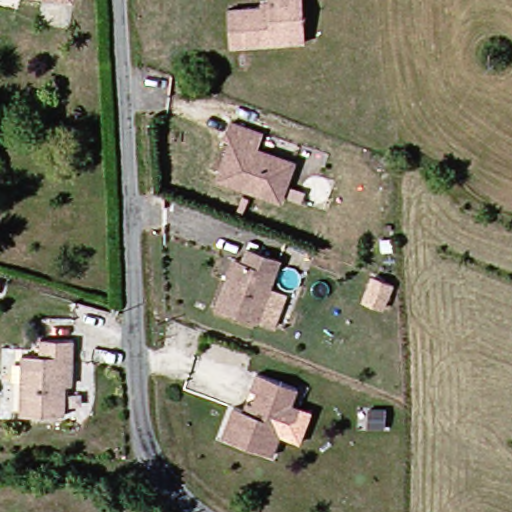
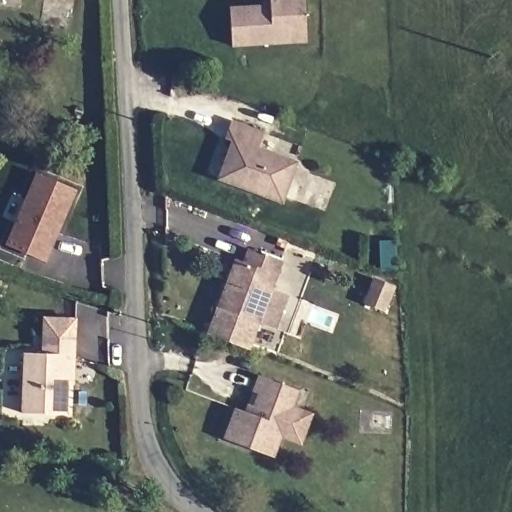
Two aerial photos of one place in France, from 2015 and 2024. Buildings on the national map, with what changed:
unchanged [(266,0),(302,0),(304,44),(228,48),(227,11),(267,10),(266,0)]
unchanged [(217,173),(227,149),(220,144),(229,126),(265,140),(261,154),(293,166),(278,207),(246,194),(213,182),(217,173)]
new [(8,244),(40,174),(78,191),(45,261),(8,244)]
unchanged [(274,333),(256,327),(214,312),(231,262),(242,266),(246,253),(277,265),(267,293),(285,300),(274,333)]
unchanged [(376,274),(396,282),(386,307),(367,298),(376,274)]
unchanged [(20,417),(16,359),(35,358),(34,341),(68,338),(69,358),(71,381),(62,382),(65,414),(20,417)]
unchanged [(294,394),(265,460),(221,438),(232,412),(241,417),(251,395),(243,391),(249,374),(294,394)]

